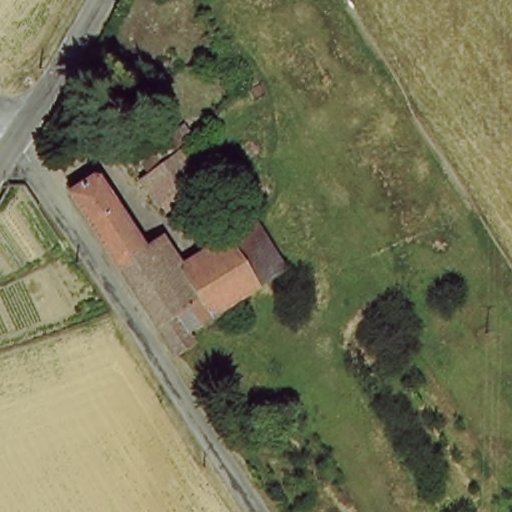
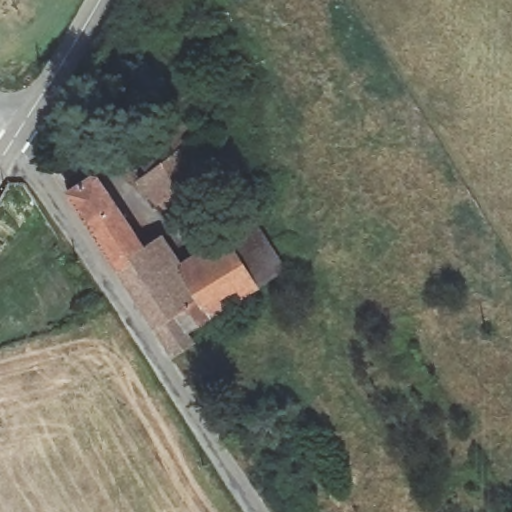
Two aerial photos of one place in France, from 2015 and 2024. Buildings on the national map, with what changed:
unchanged [(164,212),(138,173),(176,148),(203,186),(164,212)]
unchanged [(187,261),(229,234),(262,283),(196,334),(185,318),(167,331),(75,196),(103,178),(157,253),(177,239),(187,261)]

